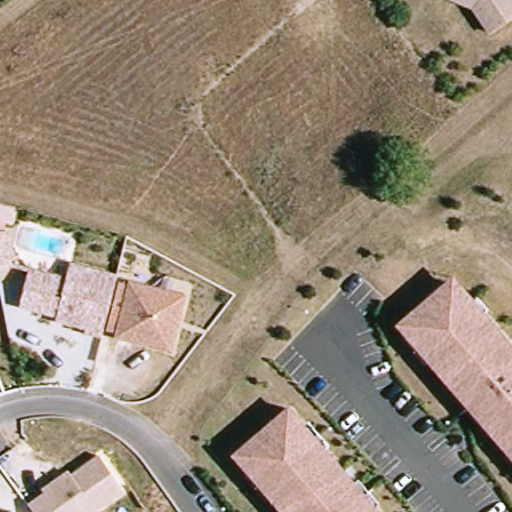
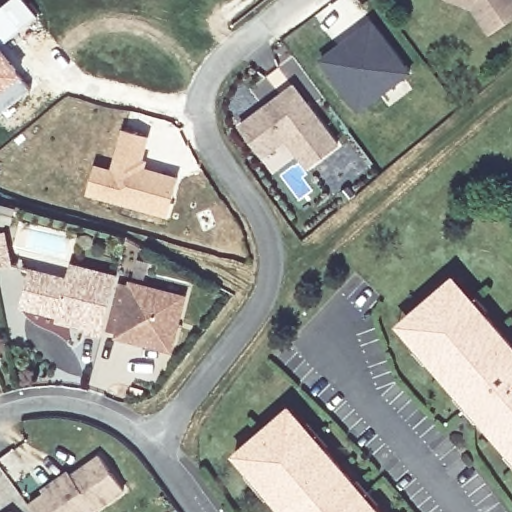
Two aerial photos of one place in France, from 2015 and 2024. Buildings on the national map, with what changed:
new [(24,0),(37,16),(4,44),(1,41),(0,42),(0,6),(7,0),(24,0)]
unchanged [(477,5),(464,0),(512,0),(512,20),(495,31),(477,5)]
new [(368,14),(412,73),(355,116),(314,61),(368,14)]
new [(30,89),(0,113),(0,46),(23,75),(30,89)]
new [(280,95),(294,85),(338,144),(308,166),(286,138),(263,156),(241,125),(265,107),(280,95)]
new [(147,139),(139,169),(176,178),(165,215),(87,194),(94,166),(113,172),(123,131),(147,139)]
unchanged [(0,232),(8,230),(15,264),(0,266),(0,232)]
unchanged [(102,337),(83,332),(83,326),(57,319),(58,314),(21,304),(31,266),(69,277),(73,260),(118,273),(102,337)]
unchanged [(108,333),(123,276),(189,294),(174,352),(108,333)]
unchanged [(506,457),(510,454),(481,419),(477,423),(456,399),(460,395),(431,361),(427,364),(416,352),(420,348),(400,325),(408,318),(451,282),(456,277),(476,300),(479,297),(490,309),(487,313),(512,342),(512,463),(506,457)]
unchanged [(271,497),(267,501),(246,476),(251,472),(236,454),(290,408),(305,426),(310,422),(331,446),(327,449),(356,483),(360,479),(381,504),(377,508),(381,512),(284,512),(271,497)]
unchanged [(28,502),(99,454),(127,491),(95,512),(36,512),(28,502)]
unchanged [(14,512),(9,512),(12,510),(14,512)]

